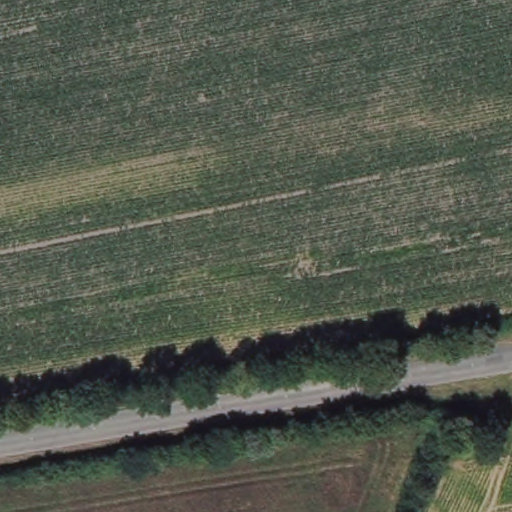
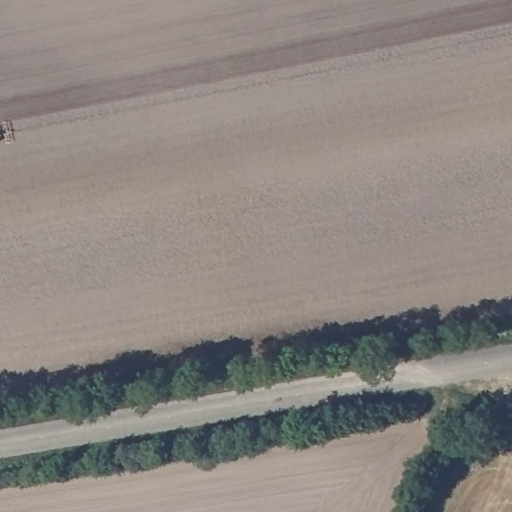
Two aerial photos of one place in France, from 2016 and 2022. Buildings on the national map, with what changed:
[]

